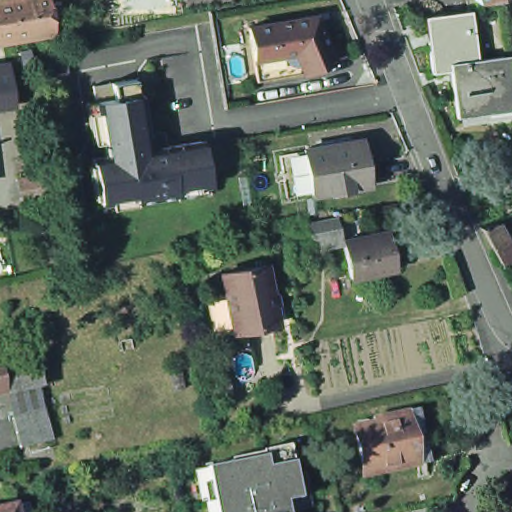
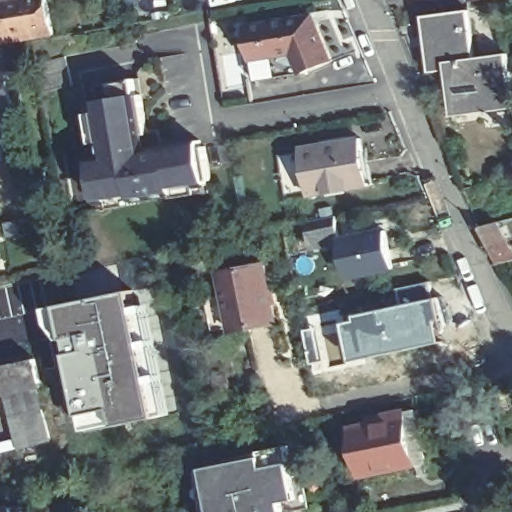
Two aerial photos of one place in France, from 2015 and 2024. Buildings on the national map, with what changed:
unchanged [(57,34),(20,40),(15,18),(2,20),(0,13),(0,0),(51,0),(57,34)]
unchanged [(252,12),(307,2),(307,0),(321,0),(324,9),(322,10),(337,45),(307,56),(297,59),(279,62),(260,65),(257,43),(252,12)]
unchanged [(455,120),(454,120),(447,70),(429,72),(422,16),(467,10),(475,56),(508,53),(512,83),(512,102),(455,110),(455,120)]
unchanged [(2,20),(15,18),(20,40),(0,43),(0,13),(2,20)]
unchanged [(36,62),(65,56),(69,70),(72,85),(42,91),(39,77),(36,62)]
unchanged [(13,76),(17,108),(0,110),(0,78),(13,76)]
unchanged [(161,134),(163,146),(170,145),(200,140),(201,146),(205,146),(207,160),(210,180),(206,180),(207,184),(205,185),(205,180),(204,181),(172,186),(173,194),(172,194),(134,200),(132,193),(100,199),(99,199),(100,202),(99,202),(98,199),(94,200),(89,166),(92,165),(92,159),(105,156),(102,142),(94,85),(140,78),(149,134),(160,132),(161,134)]
unchanged [(332,144),(388,135),(396,180),(340,190),(340,188),(332,145),(332,144)]
unchanged [(332,145),(340,188),(315,192),(307,150),(332,145)]
unchanged [(45,171),(50,192),(20,199),(15,179),(45,171)]
unchanged [(330,221),(333,241),(320,251),(309,254),(305,254),(299,227),(300,227),(330,221)]
unchanged [(512,262),(505,264),(485,227),(502,224),(512,242),(512,262)]
unchanged [(380,236),(387,273),(344,282),(337,245),(380,236)]
unchanged [(230,294),(225,272),(269,263),(280,322),(237,331),(236,326),(217,330),(210,298),(230,294)]
new [(357,317),(357,315),(400,304),(396,288),(431,280),(436,296),(440,295),(445,323),(440,325),(442,342),(351,361),(350,359),(344,321),(357,317)]
new [(132,288),(137,305),(147,303),(151,320),(153,332),(157,352),(152,353),(158,371),(164,370),(175,412),(85,432),(67,340),(60,341),(49,324),(45,306),(132,288)]
unchanged [(164,303),(177,300),(187,298),(192,315),(180,318),(168,321),(164,303)]
new [(315,313),(341,308),(344,321),(350,359),(327,364),(317,366),(316,365),(311,365),(302,328),(317,325),(315,313)]
unchanged [(30,355),(35,377),(0,385),(0,361),(30,355)]
unchanged [(7,413),(38,405),(42,420),(47,436),(15,444),(12,429),(7,413)]
unchanged [(411,423),(420,467),(407,470),(358,480),(349,435),(367,431),(366,425),(385,420),(387,428),(399,425),(411,423)]
unchanged [(297,498),(282,500),(286,512),(215,512),(205,462),(284,441),(297,498)]
unchanged [(21,509),(22,512),(6,512),(10,511),(21,509)]

